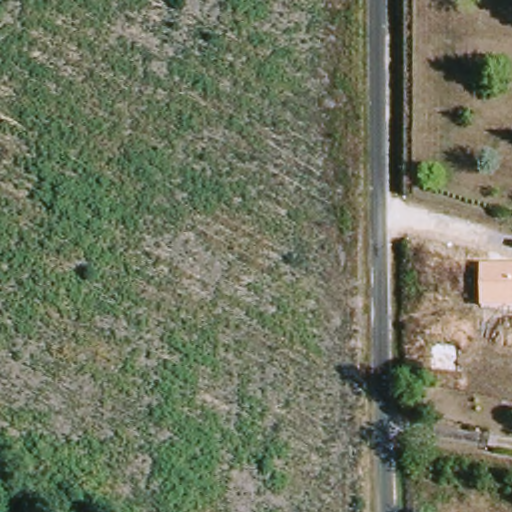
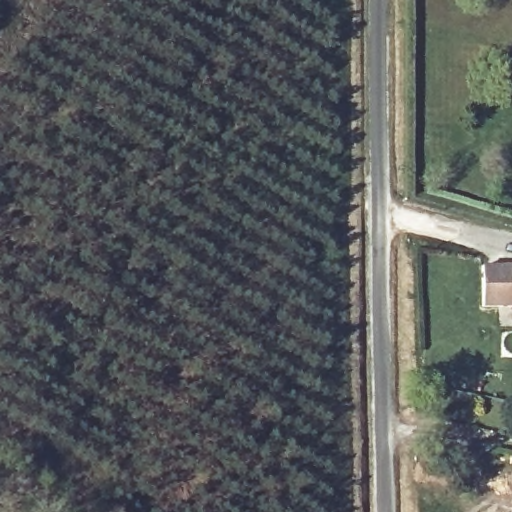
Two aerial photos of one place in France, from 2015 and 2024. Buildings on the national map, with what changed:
unchanged [(512,309),(482,310),(481,267),(512,266),(512,309)]

